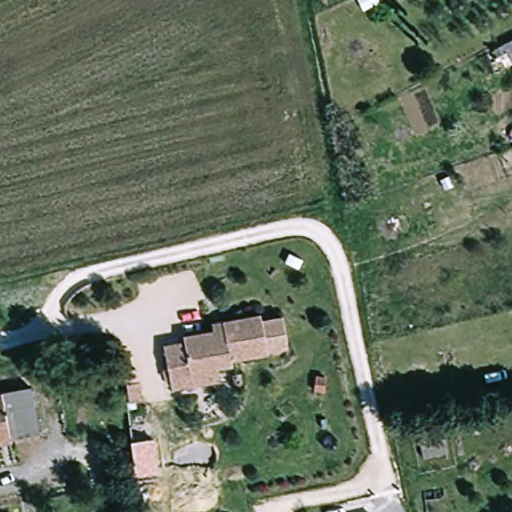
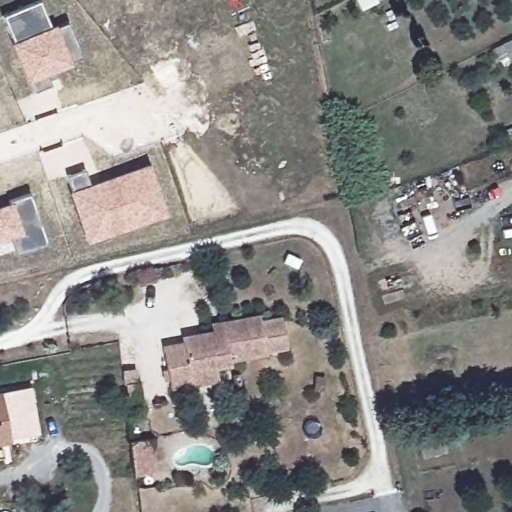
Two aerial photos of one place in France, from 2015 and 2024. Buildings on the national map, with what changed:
new [(30,81),(28,82),(11,43),(15,41),(3,16),(39,1),(49,26),(55,24),(56,27),(66,24),(80,56),(70,60),(72,64),(55,71),(56,75),(48,79),(50,84),(33,91),(30,81)]
new [(73,190),(67,175),(85,169),(89,184),(148,164),(167,215),(86,243),(68,191),(73,190)]
new [(8,199),(29,193),(45,243),(16,253),(11,239),(0,242),(0,206),(8,203),(8,199)]
unchanged [(190,387),(166,391),(158,350),(183,346),(182,340),(213,336),(211,327),(223,325),(259,319),(260,325),(281,322),(286,351),(265,354),(265,357),(228,363),(230,368),(212,371),(213,383),(190,387)]
unchanged [(140,401),(128,403),(125,383),(138,382),(140,401)]
unchanged [(0,390),(23,386),(32,433),(6,437),(10,455),(0,457),(0,390)]
unchanged [(447,454),(421,459),(417,438),(444,433),(447,454)]
unchanged [(159,474),(136,475),(133,441),(151,439),(159,474)]

